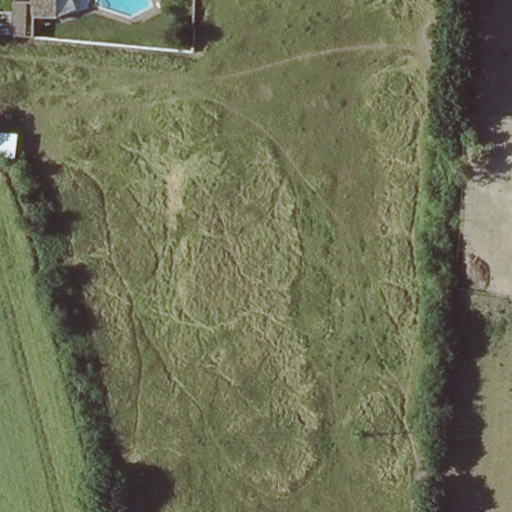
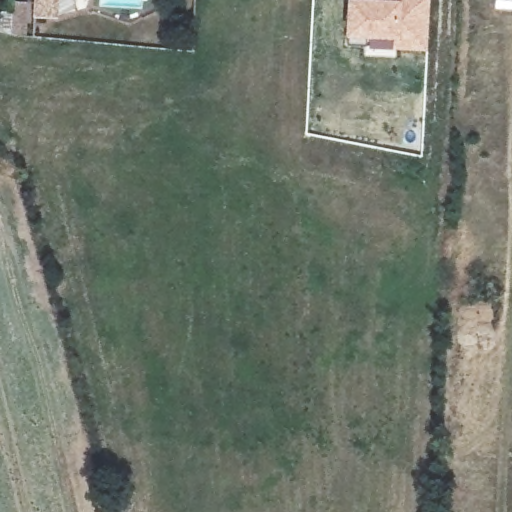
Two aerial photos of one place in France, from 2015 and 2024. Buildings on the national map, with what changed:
unchanged [(59,14),(32,14),(33,0),(59,0),(59,14)]
new [(346,0),(429,0),(428,50),(391,48),(391,40),(345,36),(346,0)]

